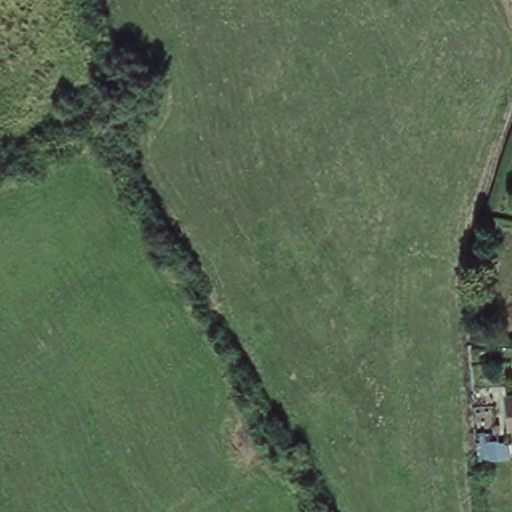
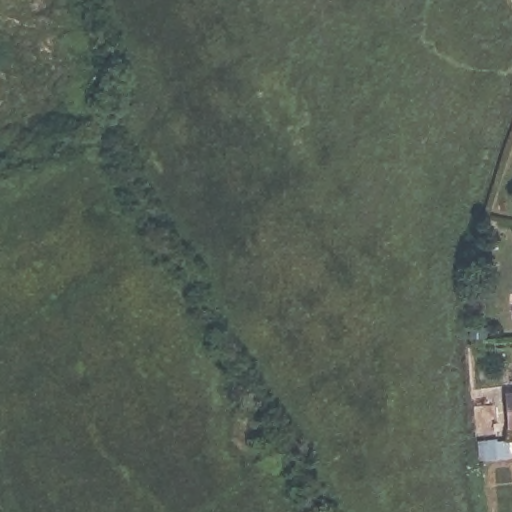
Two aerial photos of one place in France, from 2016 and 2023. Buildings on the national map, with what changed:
unchanged [(512,295),(512,322),(511,322),(512,295)]
unchanged [(498,399),(512,398),(512,428),(499,429),(498,399)]

